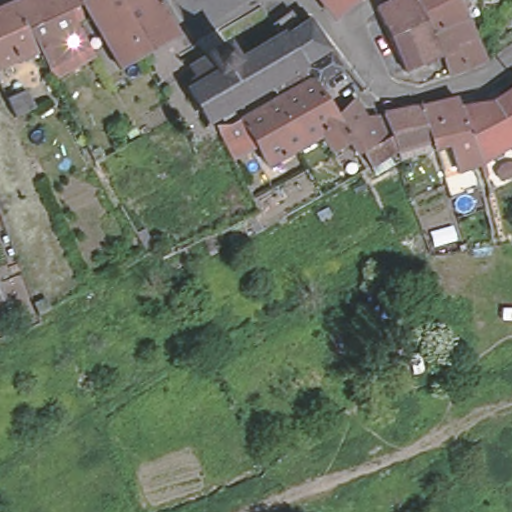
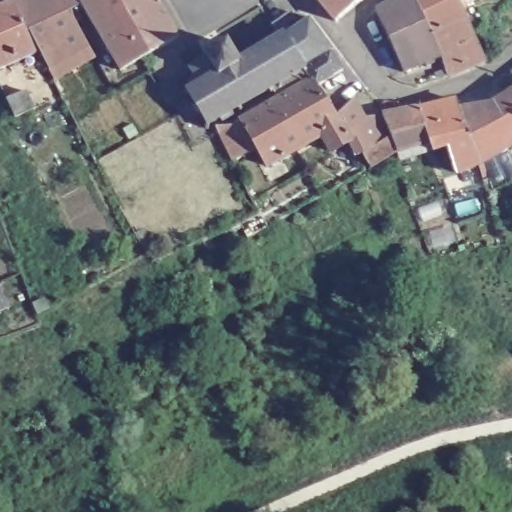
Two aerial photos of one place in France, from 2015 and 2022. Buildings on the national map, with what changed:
unchanged [(60,18),(27,33),(15,9),(35,0),(79,0),(84,7),(60,18)]
unchanged [(157,0),(180,40),(120,70),(84,7),(79,0),(157,0)]
unchanged [(311,0),(362,0),(331,24),(311,0)]
unchanged [(450,79),(441,59),(405,74),(384,29),(376,13),(399,3),(404,0),(489,0),(464,6),(469,21),(487,63),(464,73),(450,79)]
unchanged [(27,33),(38,53),(0,70),(0,16),(15,9),(27,33)]
unchanged [(60,18),(85,68),(55,84),(38,53),(27,33),(60,18)]
unchanged [(295,97),(307,91),(309,84),(305,79),(274,95),(275,98),(270,100),(269,98),(243,112),(245,115),(240,118),(239,115),(234,118),(235,120),(222,127),(221,125),(212,129),(210,136),(205,134),(207,129),(203,121),(197,124),(192,111),(196,109),(192,100),(186,99),(187,94),(192,95),(190,89),(195,86),(192,79),(187,78),(188,74),(191,74),(207,66),(210,63),(229,52),(239,69),(249,63),(247,59),(251,57),(253,60),(279,45),(272,33),(290,20),(300,35),(307,32),(307,25),(312,25),(312,31),(327,54),(335,54),(333,60),(339,70),(343,78),(317,95),(324,106),(337,124),(354,105),(365,124),(377,124),(387,148),(392,144),(385,123),(418,115),(457,106),(459,113),(477,112),(492,111),(512,100),(512,152),(497,160),(482,170),(487,185),(484,187),(480,172),(459,180),(452,153),(435,159),(431,160),(428,151),(397,159),(392,162),(372,174),(364,161),(360,164),(352,150),(332,159),(322,143),(268,172),(259,155),(234,169),(221,140),(219,134),(224,132),(227,134),(242,126),(295,97)]
unchanged [(91,152),(102,147),(107,156),(107,158),(97,163),(96,161),(91,152)]
unchanged [(280,194),(285,203),(279,205),(275,197),(280,194)]
unchanged [(15,311),(0,317),(0,284),(2,283),(15,311)]

